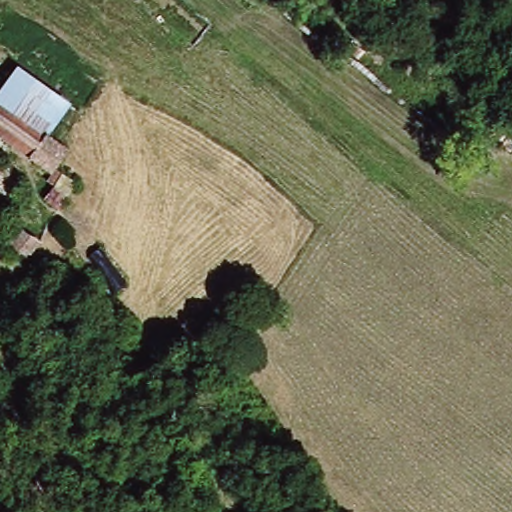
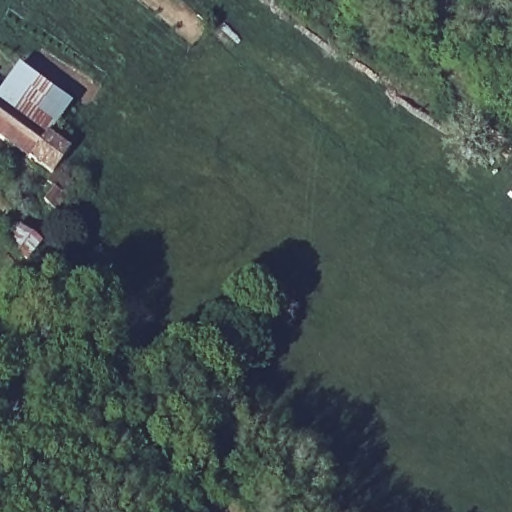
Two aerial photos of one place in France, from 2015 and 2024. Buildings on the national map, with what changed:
unchanged [(30,116),(45,129),(29,157),(0,138),(0,58),(47,90),(30,116)]
unchanged [(29,157),(50,175),(34,203),(15,188),(13,176),(29,157)]
unchanged [(3,234),(0,232),(0,211),(9,217),(3,234)]

